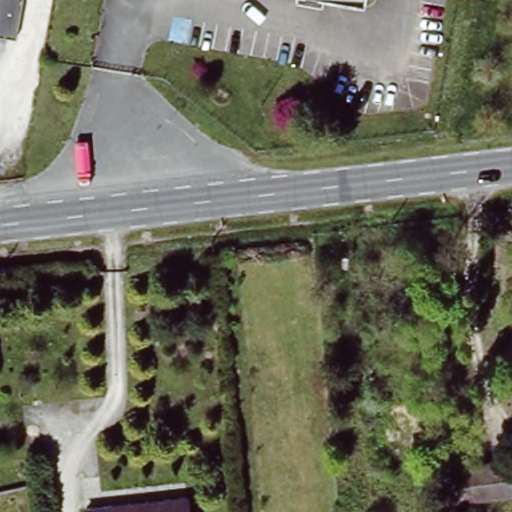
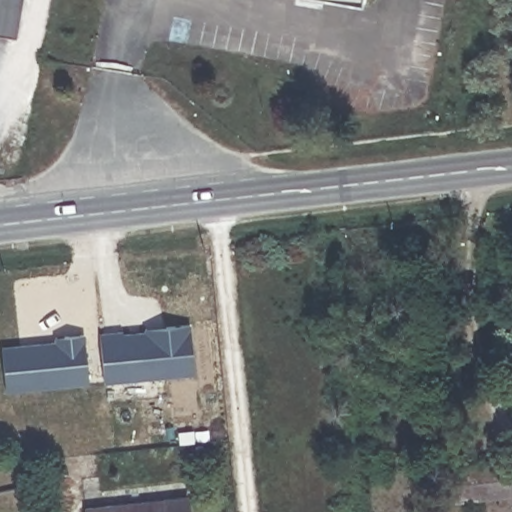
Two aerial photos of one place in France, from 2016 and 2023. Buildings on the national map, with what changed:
unchanged [(0,30),(0,0),(9,0),(3,31),(0,30)]
new [(195,373),(106,382),(102,336),(145,332),(145,336),(165,333),(165,327),(189,325),(195,373)]
new [(6,392),(1,346),(55,342),(55,337),(83,333),(89,384),(6,392)]
unchanged [(512,457),(512,494),(468,498),(464,462),(512,457)]
unchanged [(186,495),(188,512),(87,512),(86,504),(186,495)]

